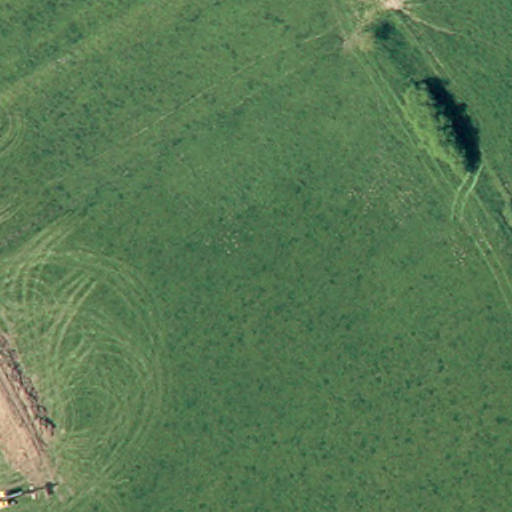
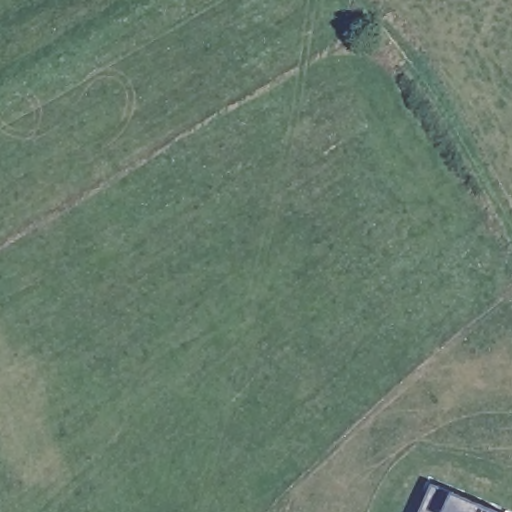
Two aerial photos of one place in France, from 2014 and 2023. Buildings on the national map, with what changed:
new [(504,512),(423,512),(435,483),(504,512)]

